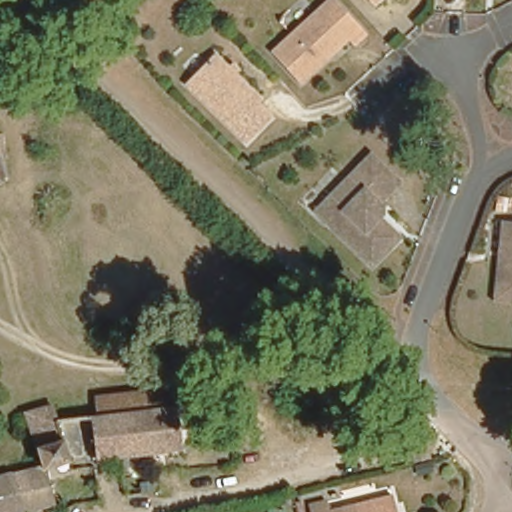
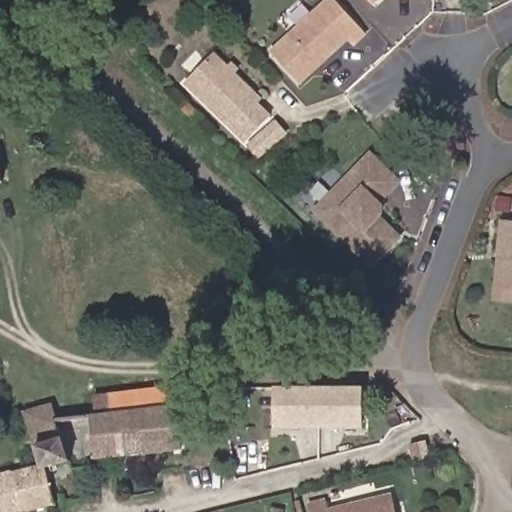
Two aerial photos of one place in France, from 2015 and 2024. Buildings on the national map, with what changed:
unchanged [(323,0),(333,0),(362,31),(349,43),(343,37),(296,82),(267,51),(323,0)]
unchanged [(366,0),(370,0),(368,2),(366,0)]
unchanged [(212,57),(272,117),(244,145),(184,86),(212,57)]
unchanged [(322,198),(366,154),(396,184),(372,209),(372,217),(392,237),(366,264),(323,222),(311,210),(322,198)]
unchanged [(496,256),(499,220),(512,222),(512,303),(491,301),(496,256)]
unchanged [(40,458),(24,406),(72,395),(75,410),(94,408),(92,390),(174,381),(182,444),(70,457),(60,459),(62,472),(49,475),(55,499),(20,507),(21,512),(0,512),(0,469),(40,458)]
new [(277,390),(362,391),(361,429),(276,427),(277,390)]
unchanged [(408,446),(431,440),(435,453),(412,459),(408,446)]
unchanged [(323,499),(326,510),(387,494),(392,512),(309,512),(307,503),(323,499)]

